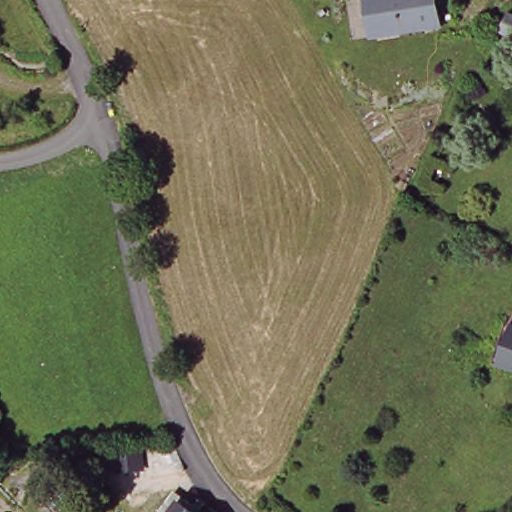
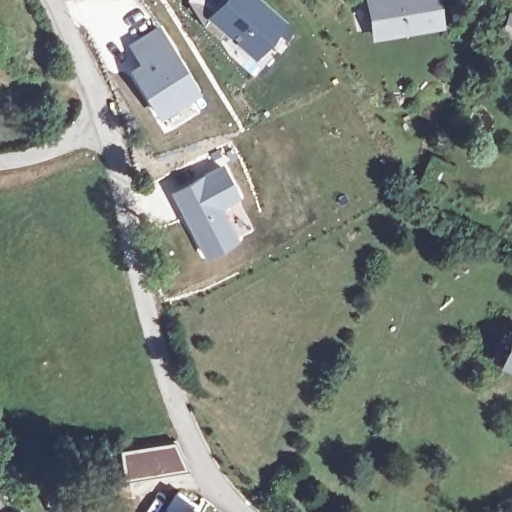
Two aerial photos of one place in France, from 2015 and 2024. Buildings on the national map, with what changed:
new [(220,0),(263,0),(287,21),(255,58),(206,16),(220,0)]
unchanged [(377,38),(372,0),(442,0),(445,29),(377,38)]
new [(160,24),(200,90),(159,116),(127,67),(137,61),(127,43),(160,24)]
new [(225,162),(243,200),(224,210),(239,239),(204,257),(169,192),(225,162)]
unchanged [(512,332),(512,365),(501,360),(512,332)]
new [(125,478),(121,450),(175,443),(185,468),(125,478)]
unchanged [(181,499),(198,512),(172,512),(181,499)]
unchanged [(205,505),(210,510),(209,512),(199,512),(205,505)]

